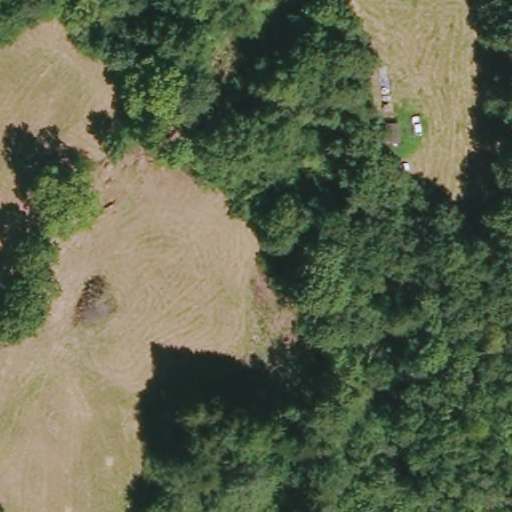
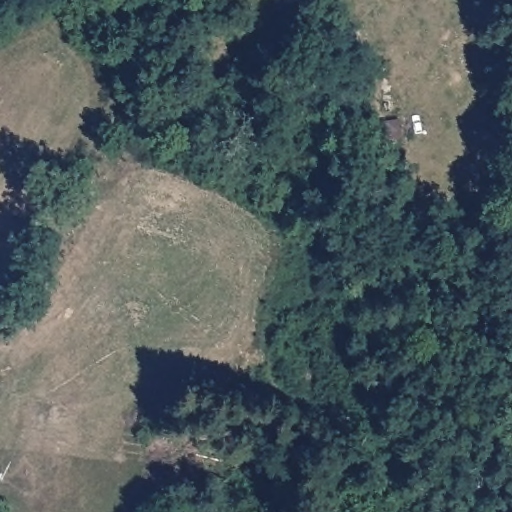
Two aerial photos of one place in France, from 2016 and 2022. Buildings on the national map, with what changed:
[]

